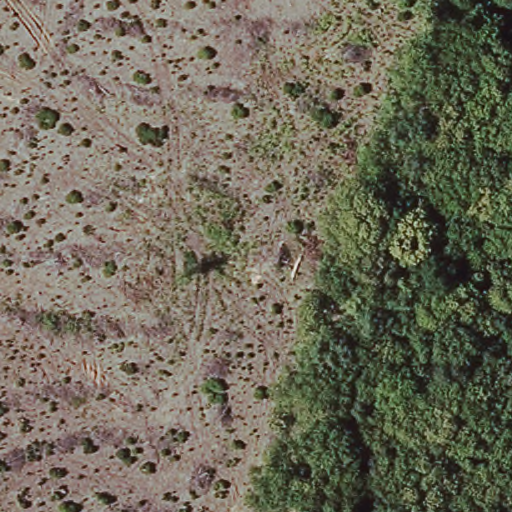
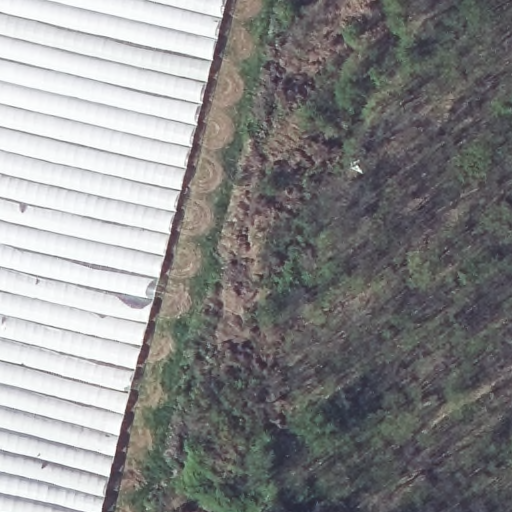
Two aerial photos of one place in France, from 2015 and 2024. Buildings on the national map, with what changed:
new [(184,190),(112,478),(105,512),(0,512),(0,0),(229,0),(184,190)]

